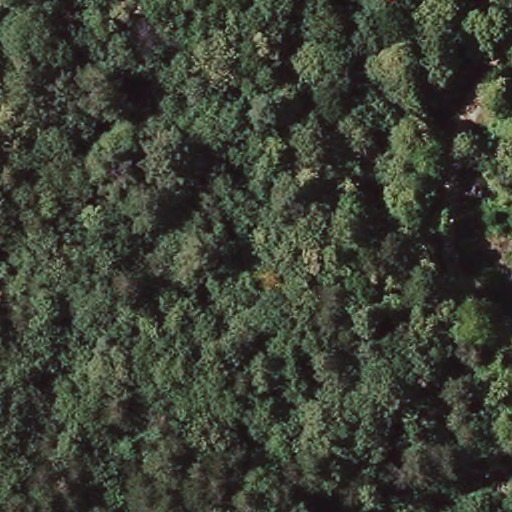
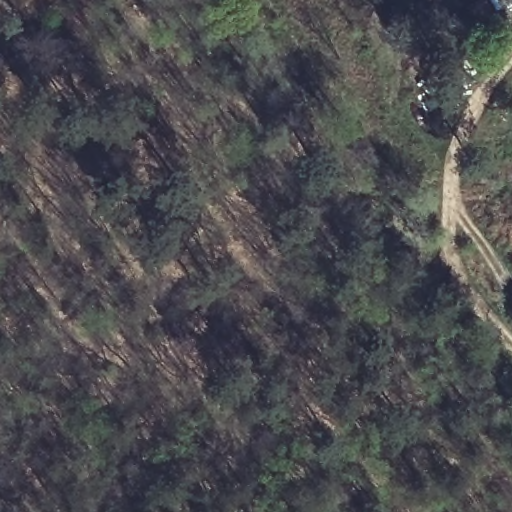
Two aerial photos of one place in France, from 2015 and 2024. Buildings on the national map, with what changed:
unchanged [(484,0),(489,0),(499,15),(484,25),(472,7),(484,0)]

